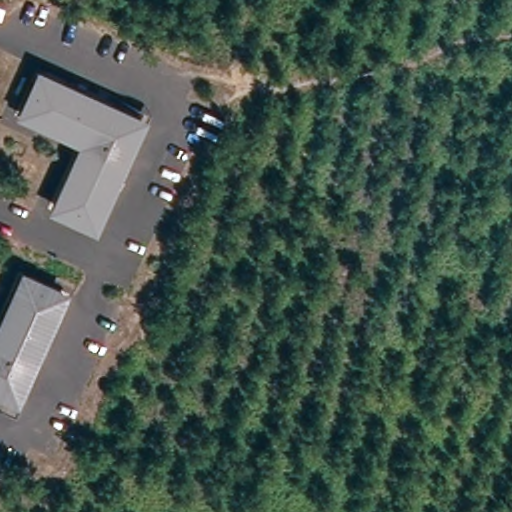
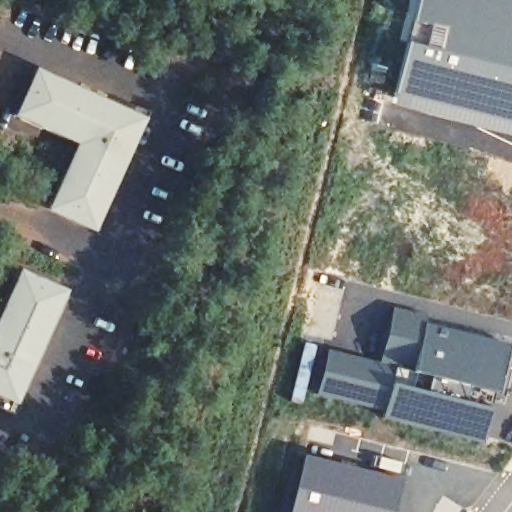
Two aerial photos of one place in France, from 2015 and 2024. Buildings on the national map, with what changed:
new [(393,105),(406,35),(416,0),(512,0),(512,139),(502,137),(393,105)]
unchanged [(42,206),(71,139),(11,111),(32,62),(141,111),(90,228),(42,206)]
unchanged [(14,263),(62,288),(12,397),(0,392),(0,295),(14,263)]
new [(393,306),(425,318),(411,371),(394,366),(377,361),(393,306)]
new [(425,318),(450,327),(512,341),(512,352),(500,399),(475,393),(475,396),(472,395),(470,402),(407,387),(411,371),(425,318)]
new [(328,348),(377,361),(394,366),(382,412),(316,393),(328,348)]
new [(382,412),(394,366),(411,371),(407,387),(470,402),(491,408),(481,444),(380,416),(382,412)]
new [(336,432),(361,440),(356,460),(330,452),(336,432)]
new [(303,453),(374,471),(378,455),(402,462),(398,477),(405,480),(397,512),(288,512),(303,453)]

